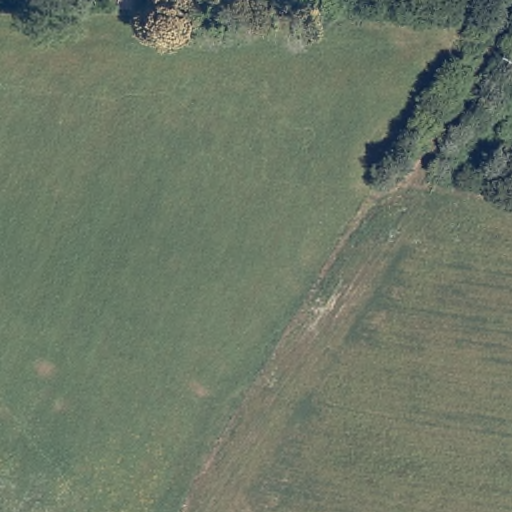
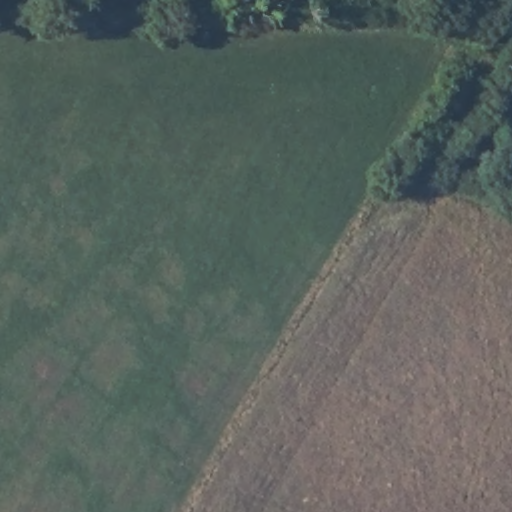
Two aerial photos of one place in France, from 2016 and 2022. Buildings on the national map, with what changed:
[]

